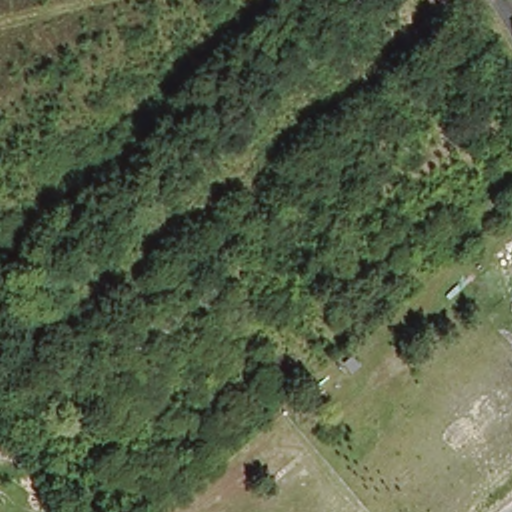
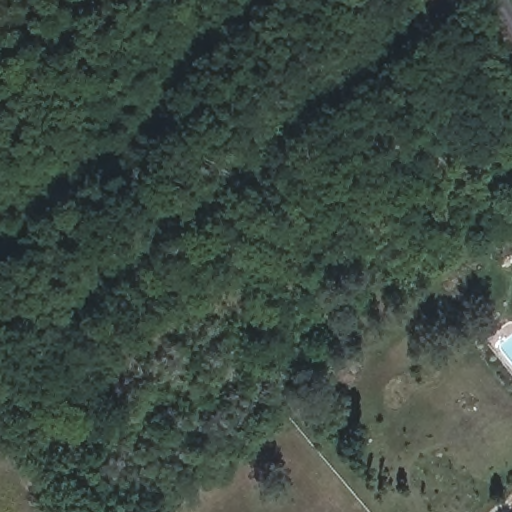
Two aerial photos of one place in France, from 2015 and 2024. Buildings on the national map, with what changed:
unchanged [(429,0),(466,0),(441,16),(429,0)]

